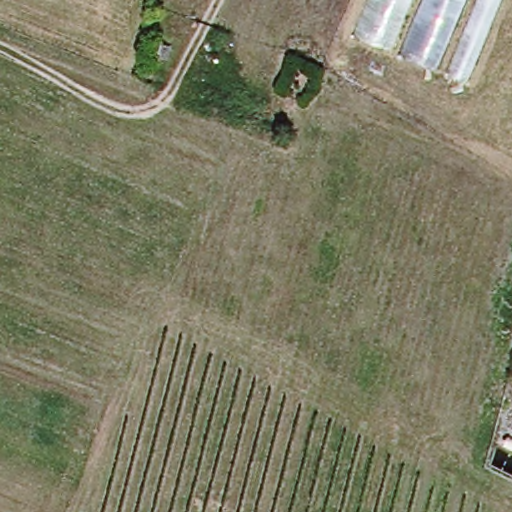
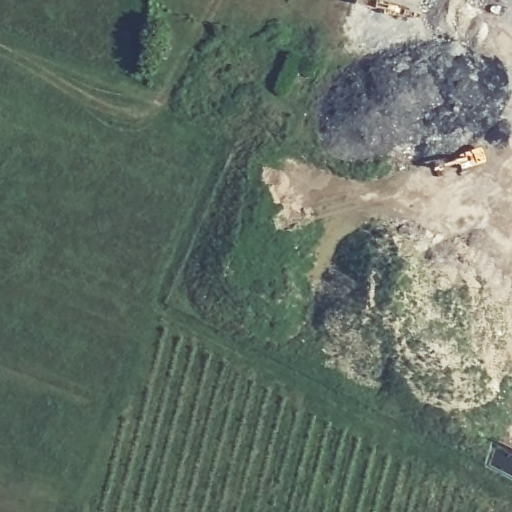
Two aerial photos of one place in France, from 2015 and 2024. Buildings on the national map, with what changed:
demolished [(497,0),(465,79),(348,29),(360,0),(497,0)]

